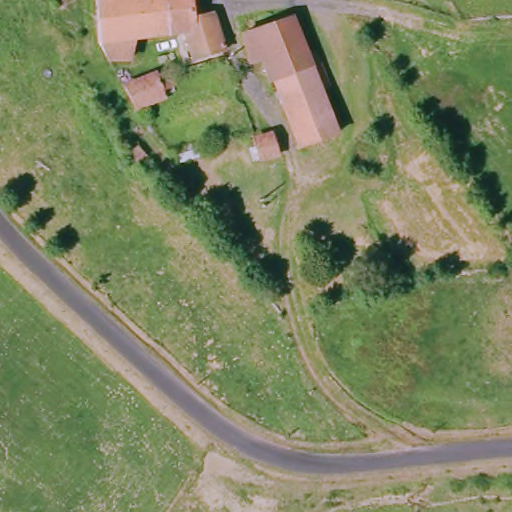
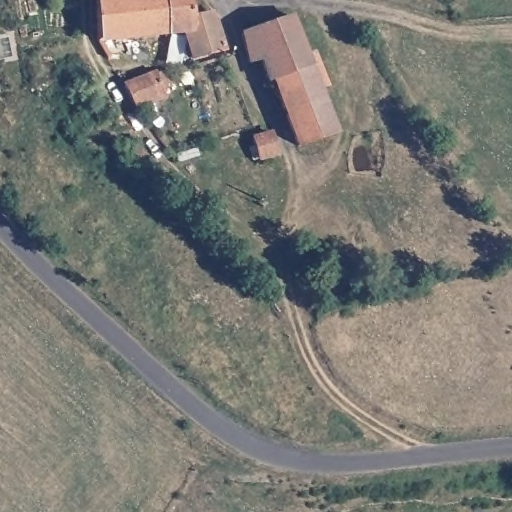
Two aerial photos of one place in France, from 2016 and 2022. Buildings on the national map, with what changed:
unchanged [(95,39),(94,0),(199,0),(211,14),(223,50),(185,58),(178,29),(137,38),(126,53),(105,58),(95,39)]
unchanged [(293,149),(273,86),(269,86),(260,64),(248,69),(238,37),(286,20),(301,63),(316,56),(328,90),(315,96),(330,136),(293,149)]
unchanged [(112,71),(133,63),(140,77),(165,69),(167,83),(161,86),(163,91),(131,106),(119,84),(112,71)]
unchanged [(270,136),(276,154),(255,161),(248,141),(270,136)]

